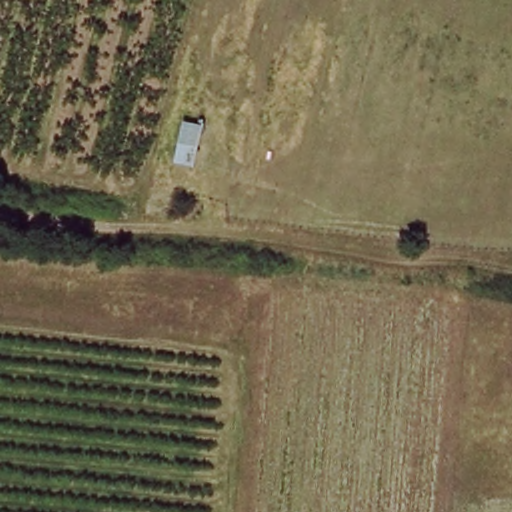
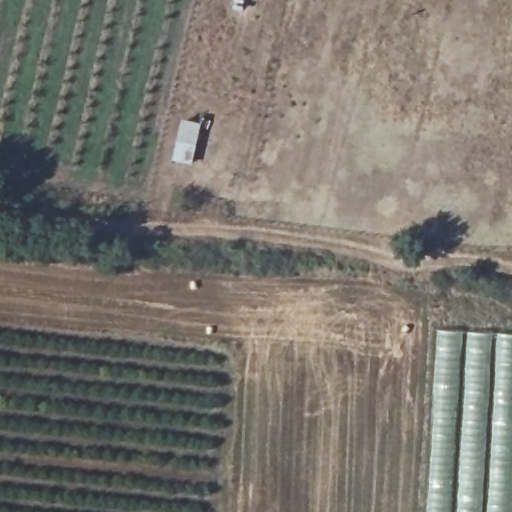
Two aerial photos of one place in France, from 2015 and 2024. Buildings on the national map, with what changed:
unchanged [(203,127),(193,171),(173,167),(183,123),(203,127)]
new [(512,336),(512,512),(427,512),(439,331),(512,336)]

